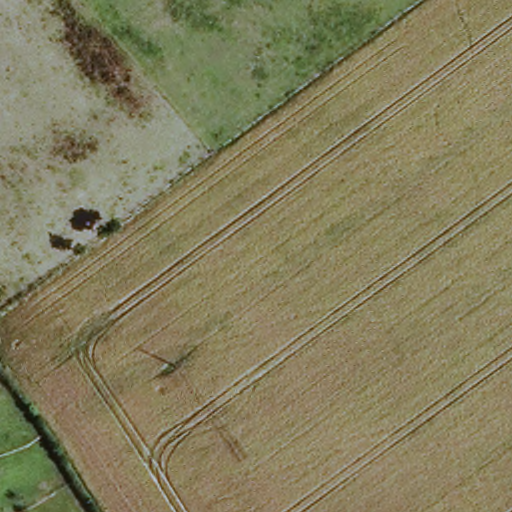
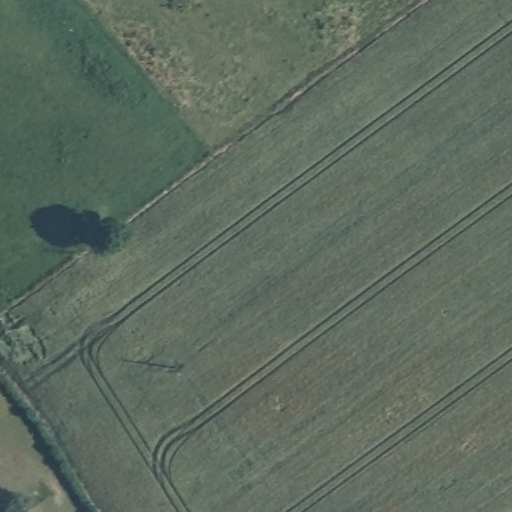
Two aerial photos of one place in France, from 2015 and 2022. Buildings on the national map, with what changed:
[]

